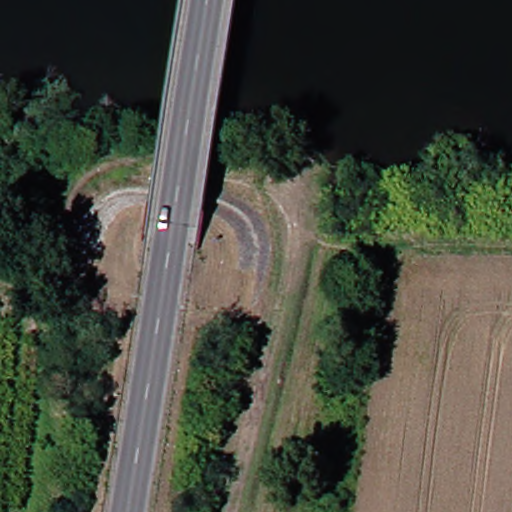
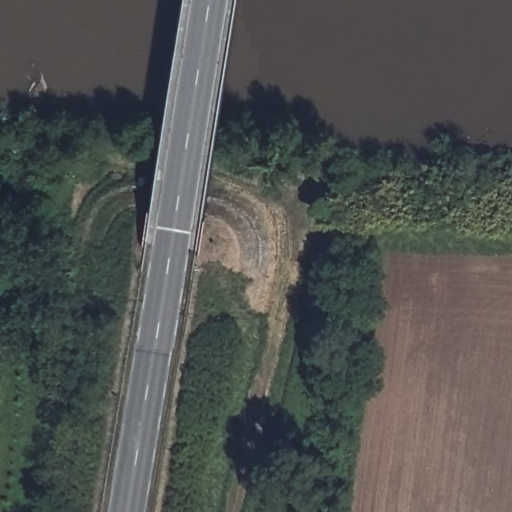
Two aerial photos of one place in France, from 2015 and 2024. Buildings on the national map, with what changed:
[]

